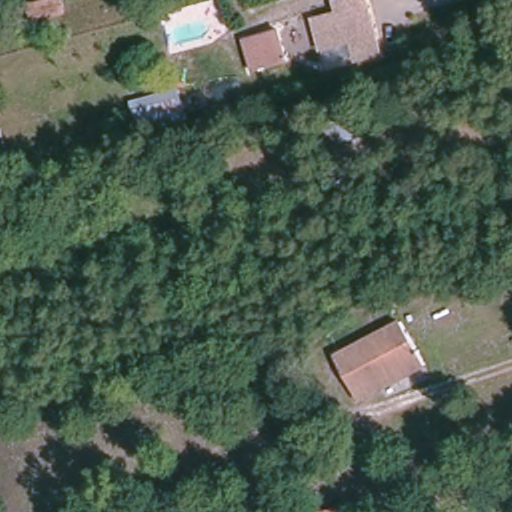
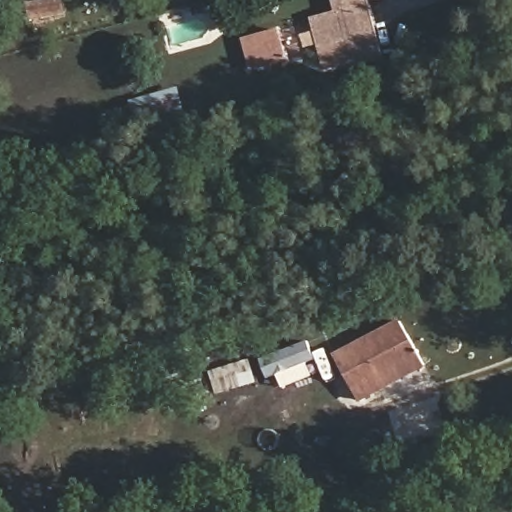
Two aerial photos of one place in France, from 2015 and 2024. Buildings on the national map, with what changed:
unchanged [(24,2),(33,0),(60,0),(63,12),(30,22),(24,2)]
unchanged [(353,63),(353,57),(322,66),(310,20),(323,17),(320,5),(338,0),(365,0),(381,55),(353,63)]
unchanged [(250,50),(256,47),(253,32),(277,27),(285,60),(255,67),(250,50)]
unchanged [(138,130),(127,86),(140,83),(143,97),(177,87),(189,119),(138,130)]
unchanged [(318,125),(364,110),(369,130),(322,144),(318,125)]
unchanged [(332,355),(398,320),(423,369),(362,406),(332,355)]
unchanged [(313,512),(343,505),(344,512),(313,512)]

